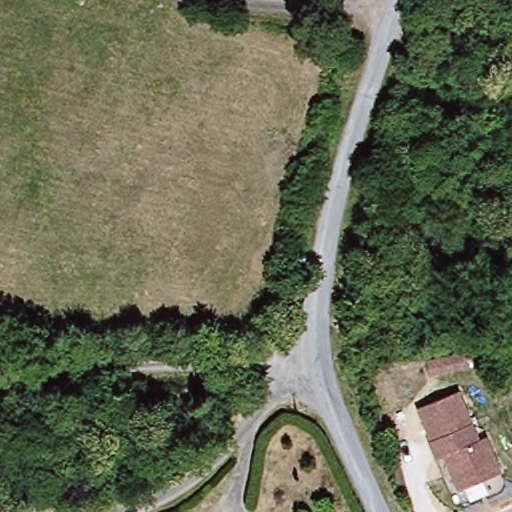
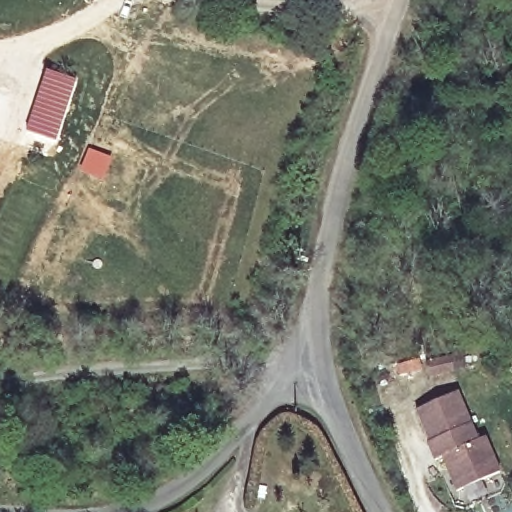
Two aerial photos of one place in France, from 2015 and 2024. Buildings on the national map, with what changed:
new [(47,69),(77,80),(57,142),(25,132),(47,69)]
unchanged [(449,356),(453,370),(430,375),(426,361),(449,356)]
unchanged [(438,462),(429,446),(432,444),(418,412),(459,394),(481,442),(488,439),(504,473),(461,493),(445,460),(438,462)]

